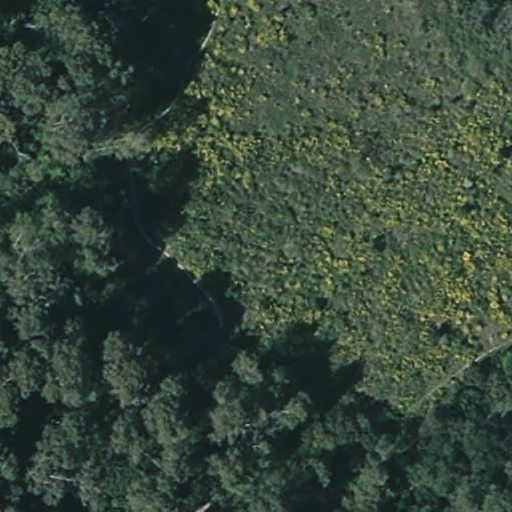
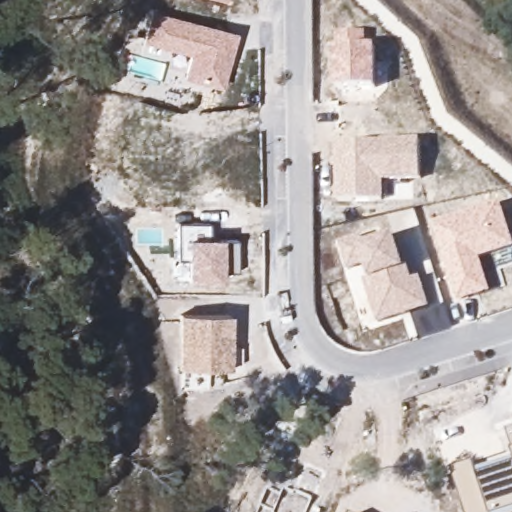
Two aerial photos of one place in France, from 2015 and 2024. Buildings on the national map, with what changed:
new [(227,1),(221,0),(226,0),(227,1)]
new [(221,88),(186,79),(192,54),(144,43),(154,11),(237,33),(221,88)]
new [(337,34),(366,33),(365,49),(377,48),(378,88),(338,88),(336,47),(337,34)]
new [(385,182),(385,203),(338,202),(338,144),(382,143),(382,140),(421,140),(422,182),(385,182)]
new [(512,234),(512,251),(481,260),(491,295),(459,303),(435,225),(503,203),(512,234)]
new [(223,268),(223,282),(187,281),(187,259),(178,259),(177,222),(209,223),(208,239),(222,237),(223,241),(237,239),(236,271),(223,268)]
new [(396,237),(406,266),(410,268),(414,280),(422,278),(430,308),(378,324),(366,279),(371,279),(367,264),(349,271),(341,243),(364,236),(366,246),(396,237)]
new [(229,313),(229,368),(177,368),(177,312),(229,313)]
new [(474,462),(507,453),(500,430),(512,427),(512,512),(465,512),(451,469),(474,462)]
new [(254,512),(267,485),(281,492),(285,483),(312,495),(304,512),(254,512)]

